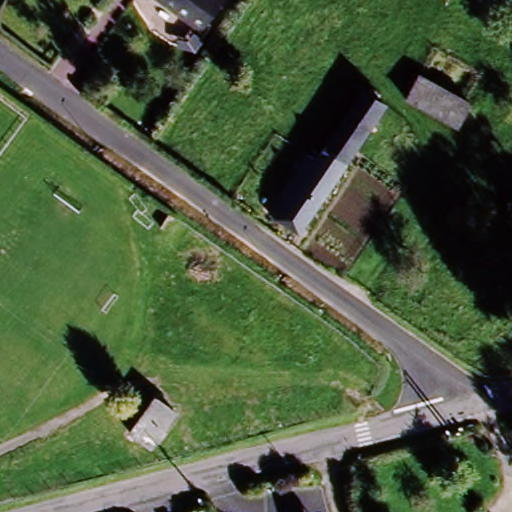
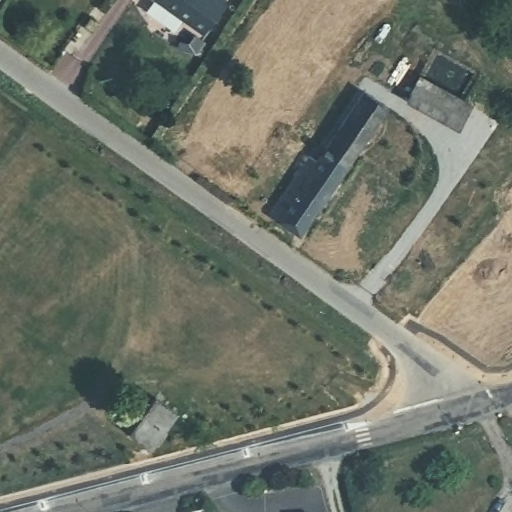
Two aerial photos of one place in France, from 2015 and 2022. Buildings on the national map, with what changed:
unchanged [(199,34),(150,0),(220,0),(222,1),(199,34)]
unchanged [(459,132),(409,101),(424,77),(474,108),(459,132)]
unchanged [(296,241),(268,222),(307,163),(314,168),(364,95),(387,110),(296,241)]
unchanged [(161,391),(181,405),(155,440),(136,426),(161,391)]

